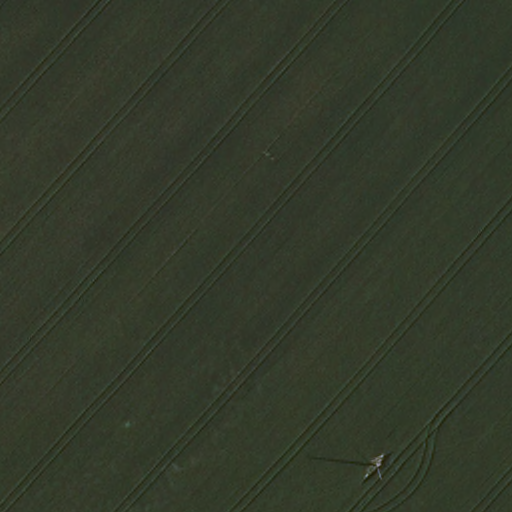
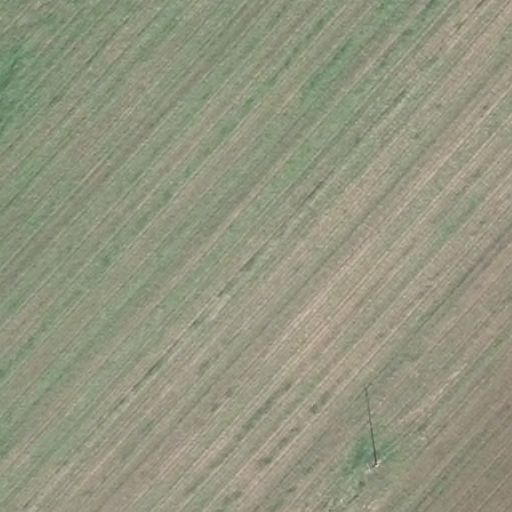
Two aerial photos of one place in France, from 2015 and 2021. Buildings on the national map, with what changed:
[]

